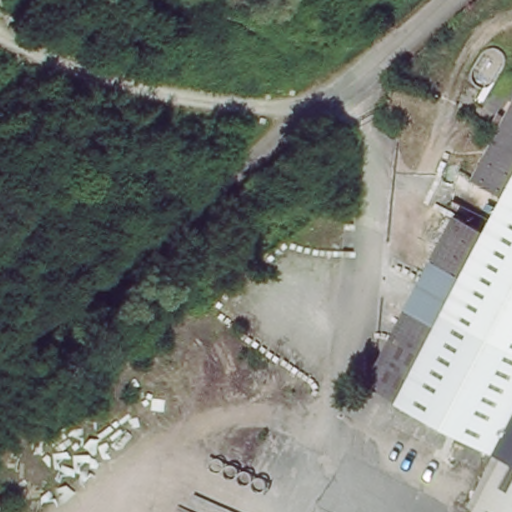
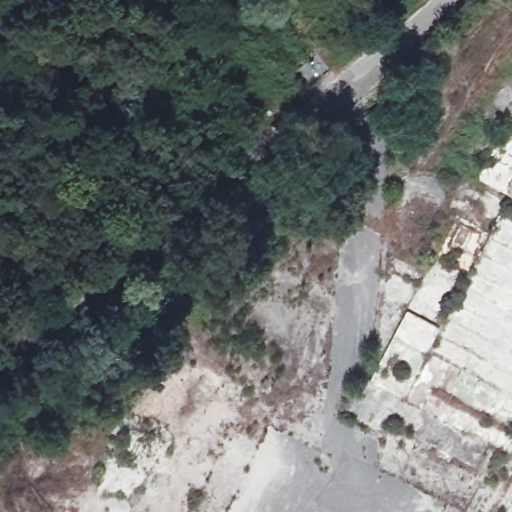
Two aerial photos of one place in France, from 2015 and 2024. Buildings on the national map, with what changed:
demolished [(479,175),(512,111),(512,192),(479,175)]
demolished [(409,311),(441,328),(468,275),(466,273),(438,256),(458,216),(492,231),(512,193),(512,457),(503,452),(371,383),(409,311)]

